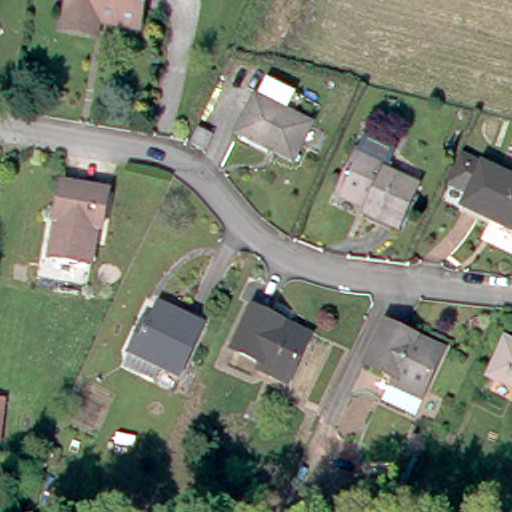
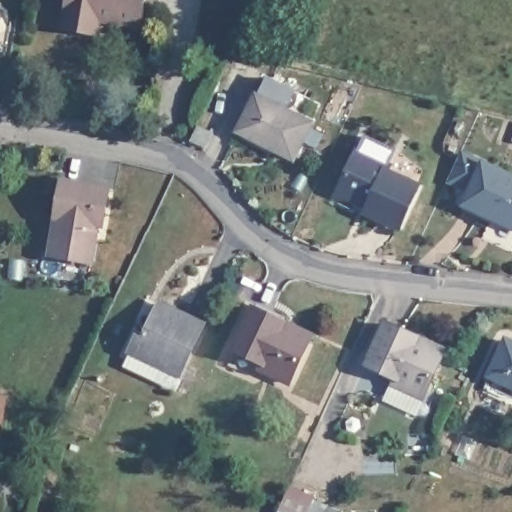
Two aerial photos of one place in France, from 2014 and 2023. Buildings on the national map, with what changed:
unchanged [(65,25),(69,0),(144,0),(139,26),(99,19),(97,30),(95,35),(64,29),(65,25)]
unchanged [(256,96),(259,98),(269,79),(294,92),(285,110),(312,124),(294,159),(238,132),(256,96)]
unchanged [(199,127),(213,134),(206,149),(192,141),(199,127)]
unchanged [(369,208),(339,194),(359,153),(366,138),(395,151),(387,166),(389,167),(387,173),(417,187),(399,228),(367,213),(369,208)]
unchanged [(455,187),(468,160),(512,181),(512,230),(470,210),(476,197),(455,187)]
unchanged [(97,225),(90,263),(50,256),(57,219),(62,182),(109,190),(102,227),(97,225)]
unchanged [(203,319),(180,370),(161,362),(155,375),(125,362),(132,348),(130,347),(142,323),(145,316),(151,319),(160,300),(203,319)]
unchanged [(260,369),(263,364),(235,350),(254,309),(284,324),(310,337),(308,342),(289,383),(260,369)]
unchanged [(385,396),(396,374),(367,360),(387,319),(417,333),(444,346),(442,352),(415,409),(385,396)]
unchanged [(512,344),(512,386),(490,376),(507,341),(512,344)]
unchanged [(0,430),(0,400),(4,400),(0,430)]
unchanged [(278,511),(290,487),(315,498),(314,500),(327,506),(325,512),(278,512),(278,511)]

